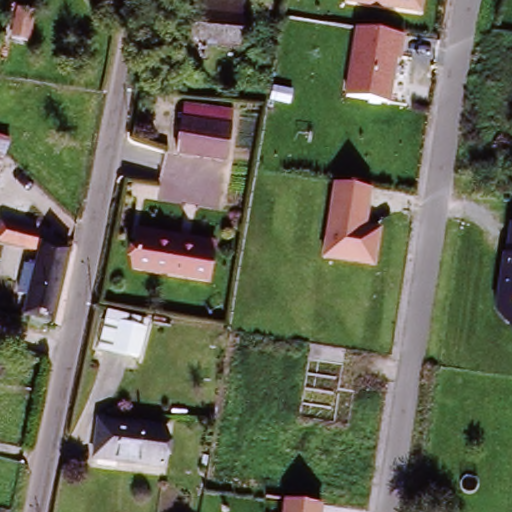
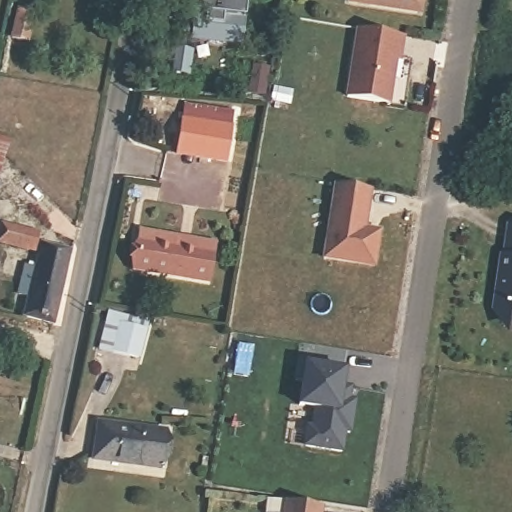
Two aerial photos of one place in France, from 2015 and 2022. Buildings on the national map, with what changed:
unchanged [(205,60),(188,58),(186,71),(174,69),(177,47),(190,49),(196,0),(246,0),(240,44),(208,40),(205,60)]
unchanged [(346,6),(346,0),(424,0),(422,17),(346,6)]
unchanged [(36,14),(30,47),(10,44),(16,10),(36,14)]
unchanged [(354,31),(404,40),(402,62),(396,62),(389,109),(344,100),(354,31)]
unchanged [(176,158),(181,123),(182,114),(236,122),(235,131),(229,167),(176,158)]
unchanged [(372,191),(366,230),(381,232),(376,271),(320,263),(331,186),(372,191)]
unchanged [(1,222),(37,231),(33,246),(0,237),(0,229),(1,222)]
unchanged [(506,226),(512,226),(512,332),(494,311),(506,226)]
unchanged [(133,268),(139,239),(141,230),(213,244),(211,252),(206,282),(133,268)]
unchanged [(67,257),(52,323),(25,317),(41,251),(67,257)]
unchanged [(107,313),(149,323),(138,363),(96,353),(107,313)]
demolished [(311,348),(344,354),(339,394),(353,395),(348,430),(298,421),(311,348)]
new [(346,370),(344,395),(356,398),(351,432),(346,432),(344,453),(302,448),(304,422),(311,424),(309,408),(299,406),(304,362),(346,370)]
unchanged [(93,422),(169,432),(166,471),(90,462),(93,422)]
unchanged [(322,512),(282,512),(283,503),(323,508),(322,512)]

